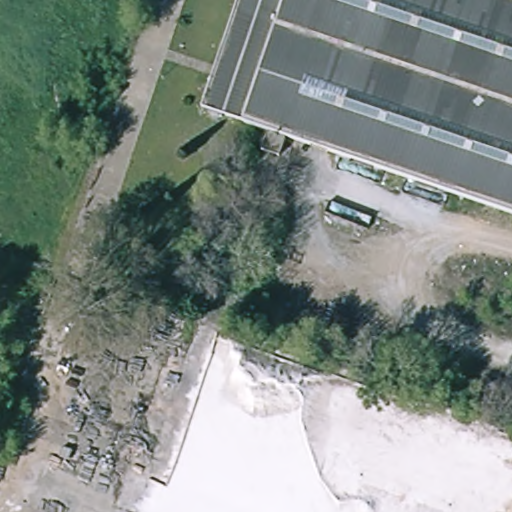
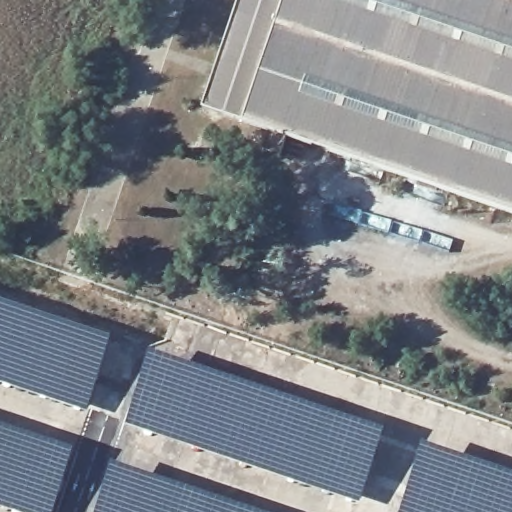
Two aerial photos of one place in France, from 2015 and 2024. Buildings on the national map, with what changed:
unchanged [(278,151),(262,144),(268,125),(205,101),(239,0),(512,0),(512,208),(287,132),(278,151)]
new [(112,339),(86,411),(0,382),(0,302),(112,339)]
new [(384,431),(360,503),(125,424),(150,351),(384,431)]
new [(52,512),(16,512),(0,507),(0,425),(75,450),(52,512)]
new [(512,512),(398,512),(423,443),(512,473),(512,512)]
new [(95,512),(112,462),(258,512),(95,512)]

